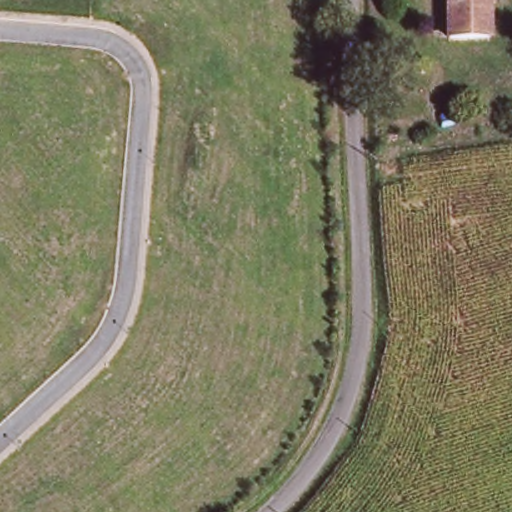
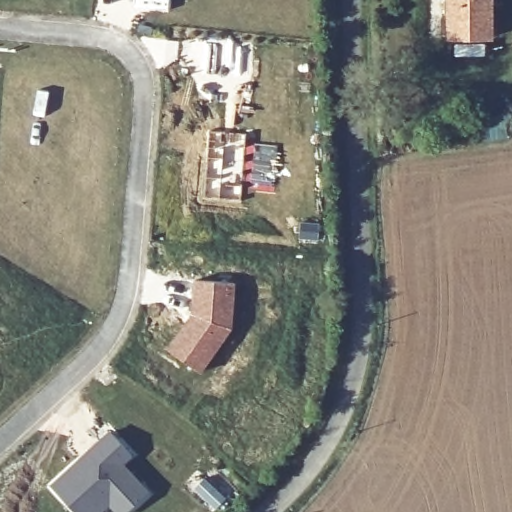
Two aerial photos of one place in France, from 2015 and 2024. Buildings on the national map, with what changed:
unchanged [(451,36),(450,0),(491,0),(491,36),(451,36)]
new [(189,312),(192,279),(236,283),(232,329),(201,374),(164,349),(189,312)]
new [(109,429),(134,456),(126,464),(152,493),(129,512),(112,512),(108,508),(103,512),(73,512),(47,485),(109,429)]
new [(205,476),(207,478),(217,469),(235,489),(214,511),(191,489),(205,476)]

